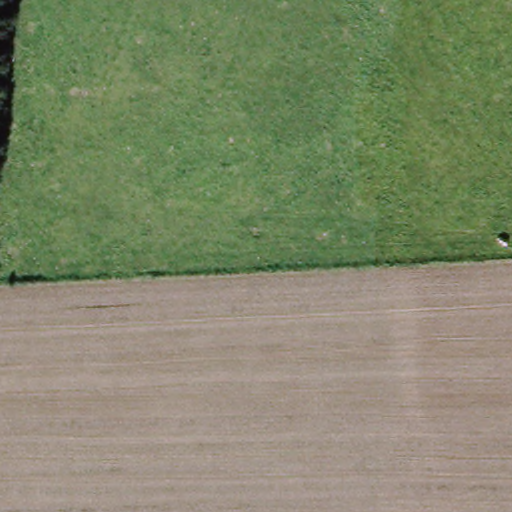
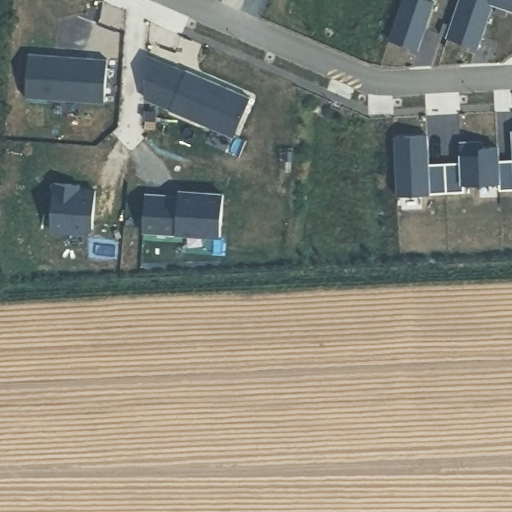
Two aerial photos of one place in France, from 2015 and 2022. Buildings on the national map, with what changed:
new [(419,49),(390,39),(404,0),(426,0),(435,3),(419,49)]
new [(493,2),(478,47),(449,37),(461,0),(512,0),(512,9),(493,2)]
new [(28,51),(106,57),(103,100),(24,94),(28,51)]
new [(251,96),(233,136),(169,108),(186,69),(251,96)]
new [(426,131),(427,159),(459,157),(459,138),(479,137),(479,144),(496,143),(496,156),(512,156),(512,185),(498,186),(497,178),(462,179),(462,187),(394,190),(392,132),(426,131)]
new [(78,183),(78,188),(70,188),(94,190),(91,227),(86,231),(49,229),(53,181),(70,183),(78,183)]
new [(144,192),(177,194),(177,189),(221,192),(218,233),(141,228),(144,192)]

